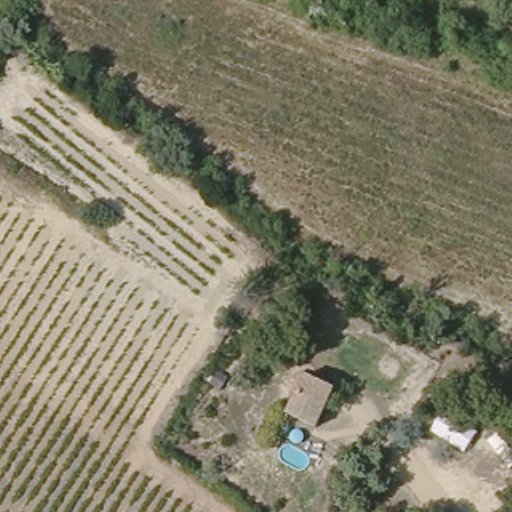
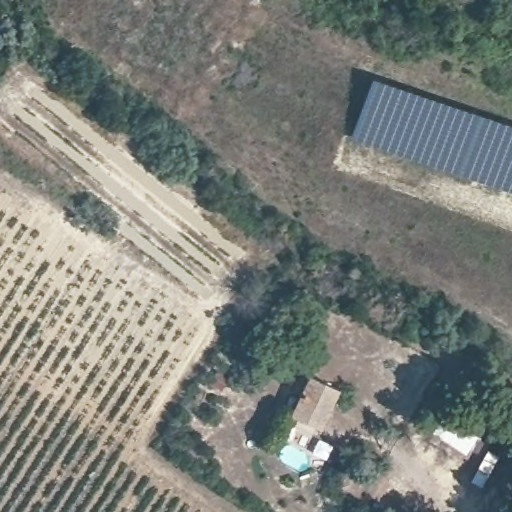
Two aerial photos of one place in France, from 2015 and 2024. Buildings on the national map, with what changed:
new [(512,125),(512,192),(351,138),(371,76),(512,125)]
unchanged [(324,426),(294,413),(314,375),(341,387),(324,426)]

